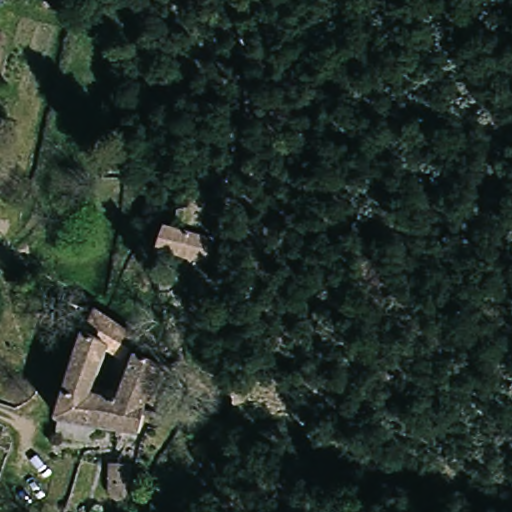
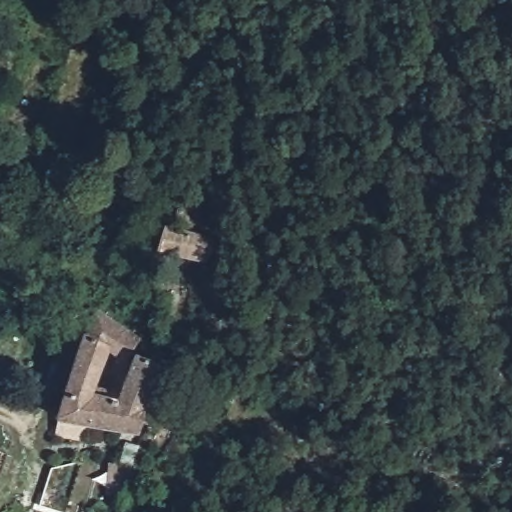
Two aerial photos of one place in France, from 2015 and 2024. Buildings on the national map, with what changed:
unchanged [(163,225),(213,235),(213,260),(156,253),(163,225)]
unchanged [(57,408),(65,378),(90,303),(132,330),(125,353),(107,347),(95,385),(118,393),(133,349),(155,356),(142,392),(146,397),(137,426),(87,415),(83,432),(52,423),(57,408)]
unchanged [(131,464),(128,502),(107,501),(107,463),(131,464)]

